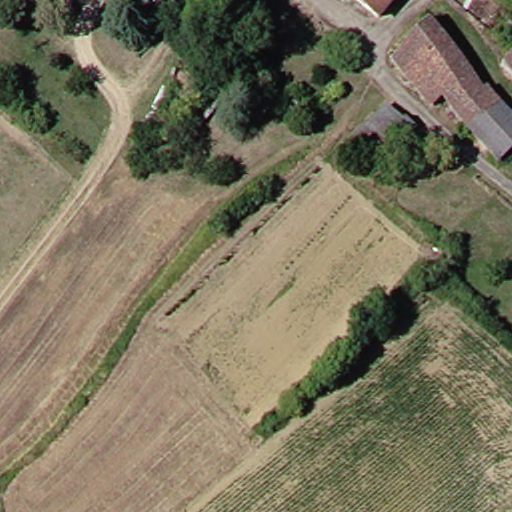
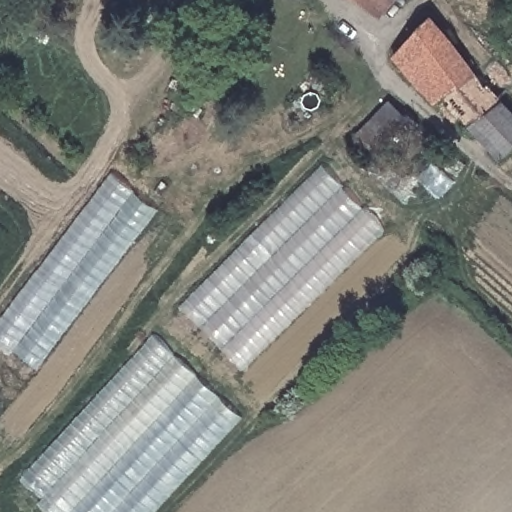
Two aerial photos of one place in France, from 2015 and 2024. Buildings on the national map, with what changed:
unchanged [(338,0),(337,2),(334,0),(338,0)]
unchanged [(350,0),(389,0),(375,18),(350,0)]
unchanged [(436,94),(428,98),(387,51),(423,18),(478,84),(483,81),(512,117),(512,151),(498,165),(436,94)]
unchanged [(382,103),(412,130),(398,143),(389,132),(363,158),(347,140),(382,103)]
new [(180,307),(323,166),(385,232),(244,370),(180,307)]
new [(38,371),(0,341),(0,318),(111,173),(158,210),(38,371)]
new [(242,418),(156,512),(48,512),(40,504),(46,496),(24,477),(153,336),(242,418)]

